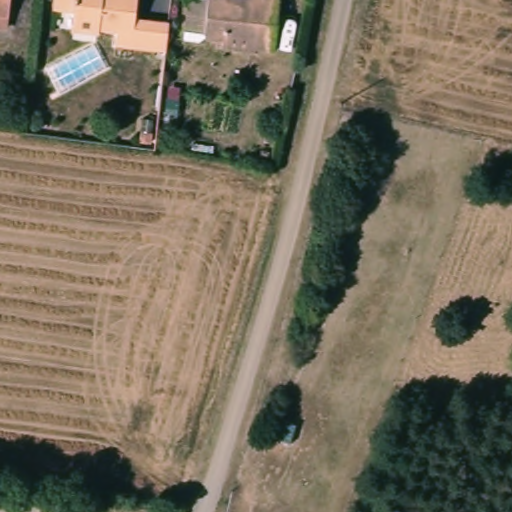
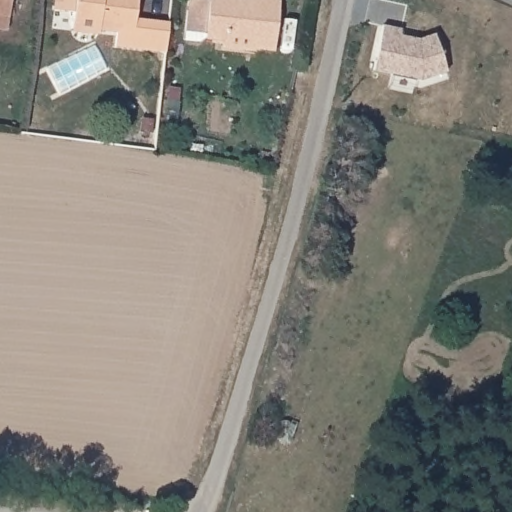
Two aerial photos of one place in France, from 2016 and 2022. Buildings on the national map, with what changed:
unchanged [(0,18),(0,0),(14,0),(12,20),(0,18)]
unchanged [(172,26),(169,50),(169,53),(123,47),(125,30),(102,28),(102,35),(75,32),(77,13),(57,12),(59,0),(141,0),(139,22),(172,26)]
unchanged [(261,0),(283,0),(275,50),(255,48),(255,54),(223,51),(224,36),(187,33),(192,0),(249,0),(261,1),(261,0)]
new [(446,70),(422,78),(373,71),(382,25),(402,28),(401,33),(418,37),(433,33),(446,70)]

